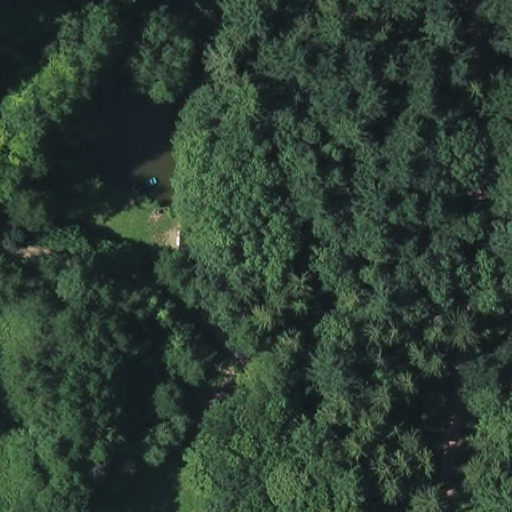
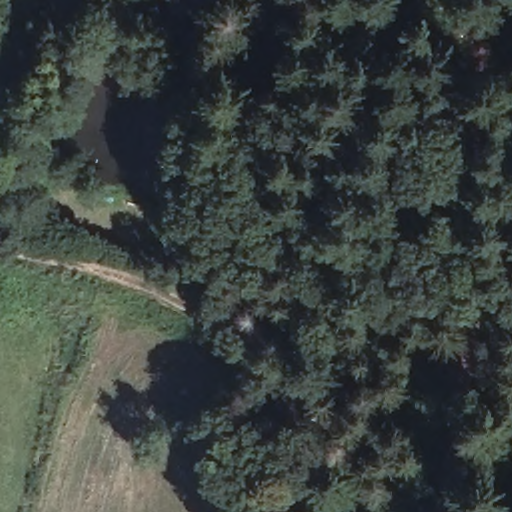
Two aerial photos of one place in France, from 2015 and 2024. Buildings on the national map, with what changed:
unchanged [(207,230),(205,262),(175,259),(179,220),(207,230)]

